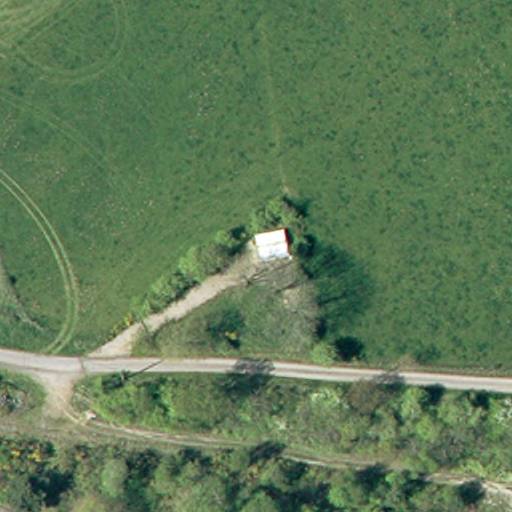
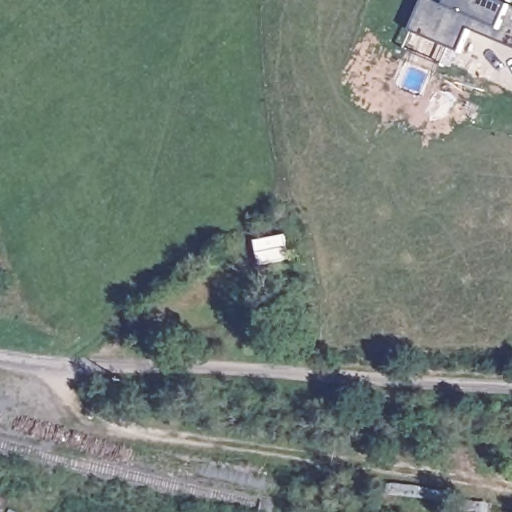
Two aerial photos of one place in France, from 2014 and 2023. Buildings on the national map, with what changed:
new [(411,29),(423,0),(504,0),(512,3),(512,44),(479,30),(470,26),(460,50),(411,29)]
unchanged [(261,317),(263,320),(265,324),(264,328),(261,332),(258,334),(254,335),(249,334),(246,331),(244,327),(244,323),(245,319),(248,316),(252,314),(256,314),(257,315),(261,317)]

